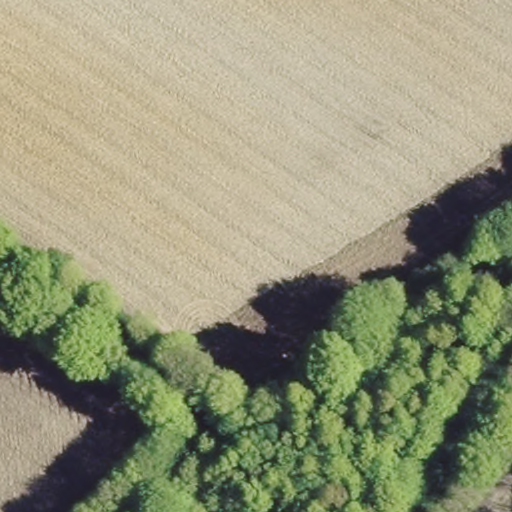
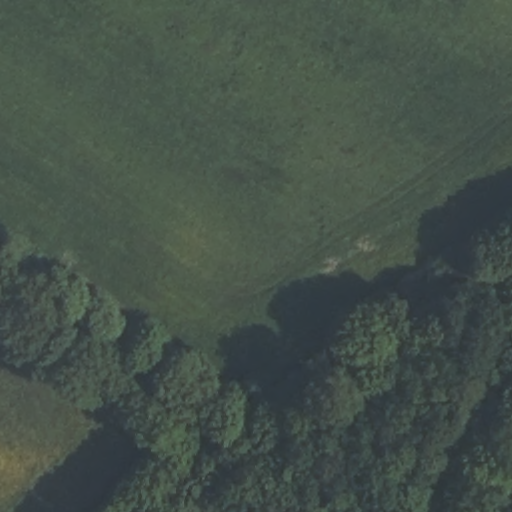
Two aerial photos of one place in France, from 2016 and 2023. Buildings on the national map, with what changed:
[]

